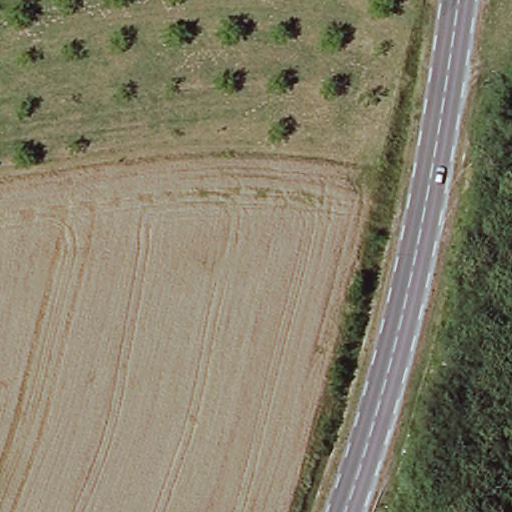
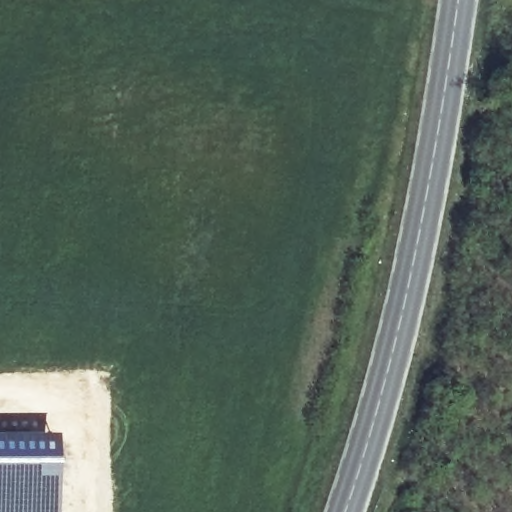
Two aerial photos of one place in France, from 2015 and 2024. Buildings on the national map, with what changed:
new [(53,438),(56,510),(56,512),(0,512),(0,438),(53,438)]

